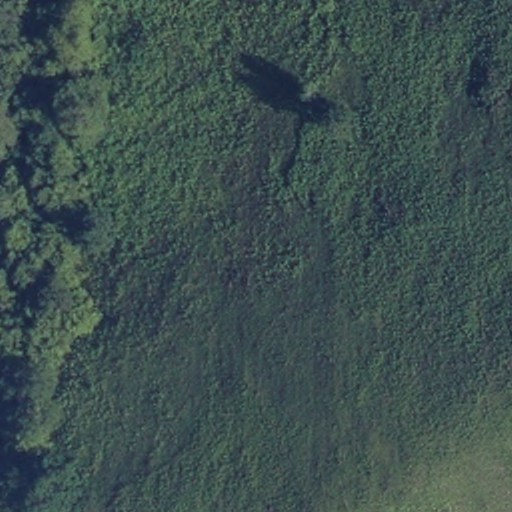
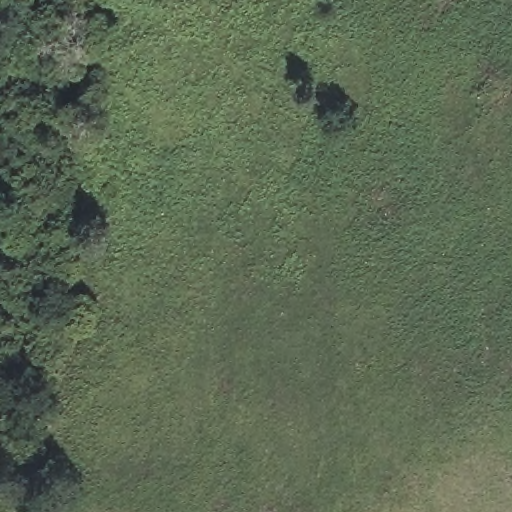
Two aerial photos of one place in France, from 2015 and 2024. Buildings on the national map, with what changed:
[]

